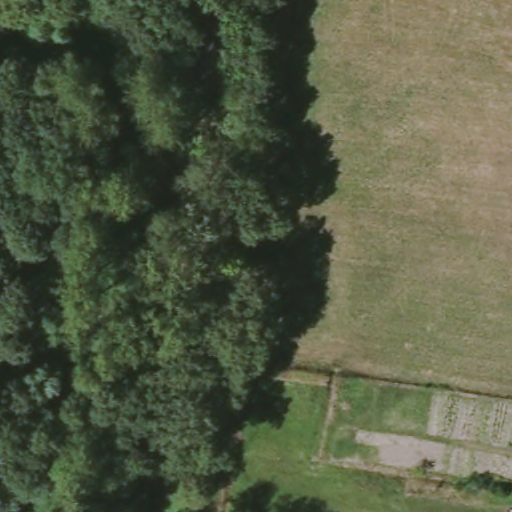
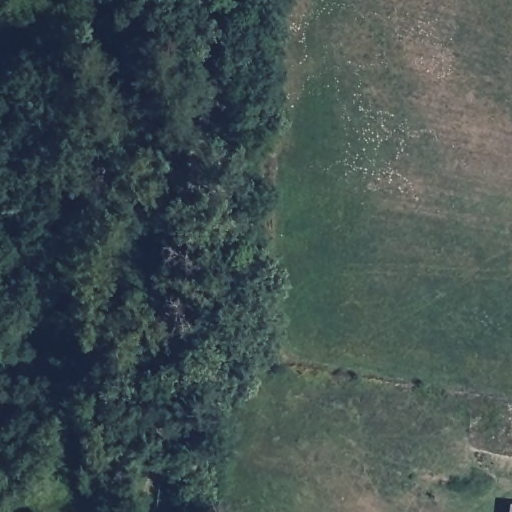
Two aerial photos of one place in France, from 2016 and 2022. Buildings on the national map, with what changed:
unchanged [(512,512),(509,512),(509,508),(512,509),(512,512)]

